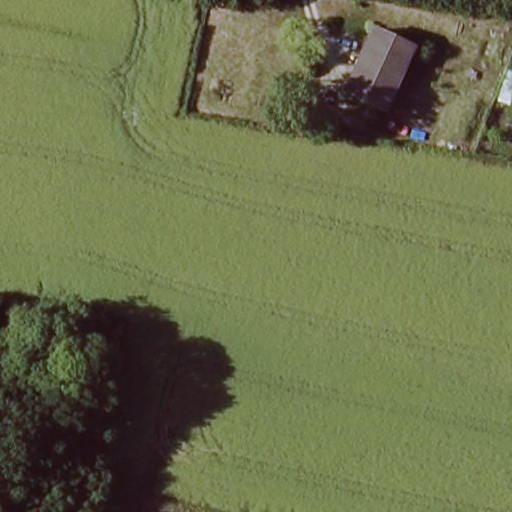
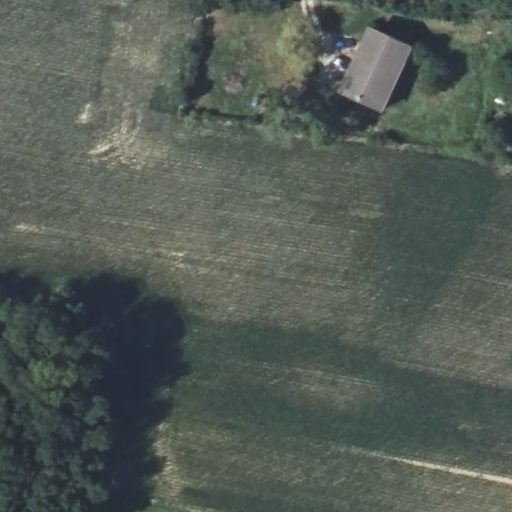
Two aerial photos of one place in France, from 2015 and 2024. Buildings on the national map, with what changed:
unchanged [(350,64),(362,30),(408,46),(385,111),(350,100),(338,96),(350,64)]

